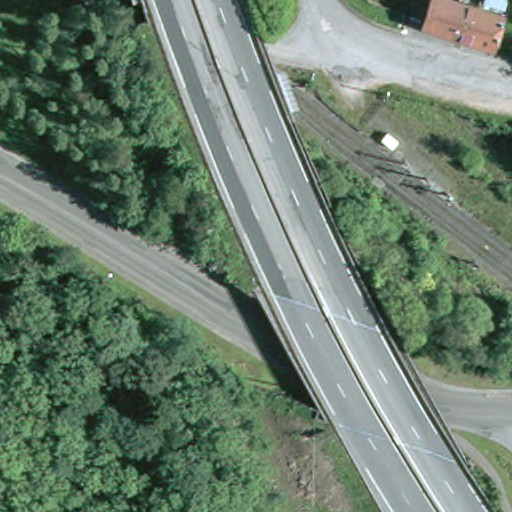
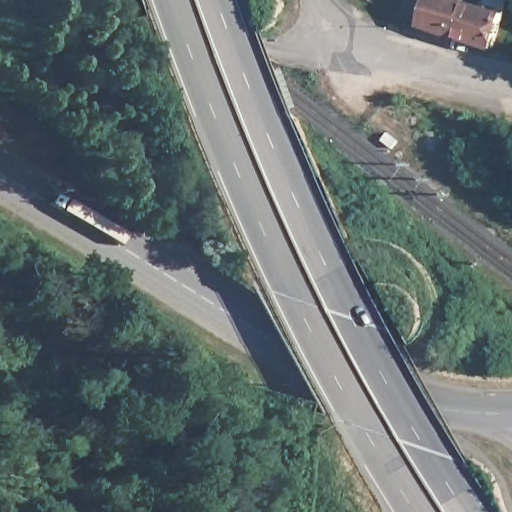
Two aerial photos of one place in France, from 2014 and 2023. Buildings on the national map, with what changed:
unchanged [(414,0),(421,0),(420,2),(414,0)]
unchanged [(505,0),(512,0),(512,21),(500,17),(505,0)]
unchanged [(470,9),(477,10),(475,16),(512,28),(512,41),(507,60),(470,50),(440,38),(448,9),(468,15),(470,9)]

